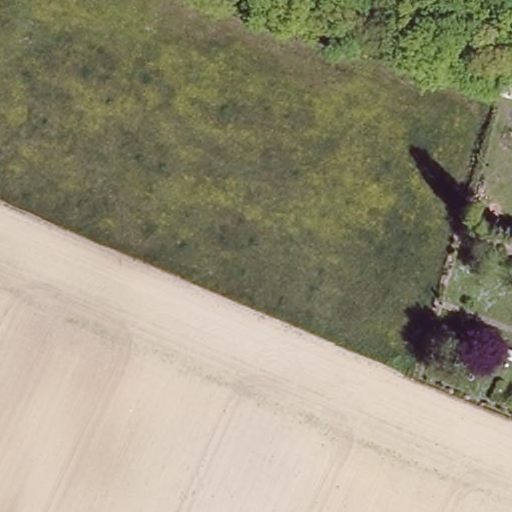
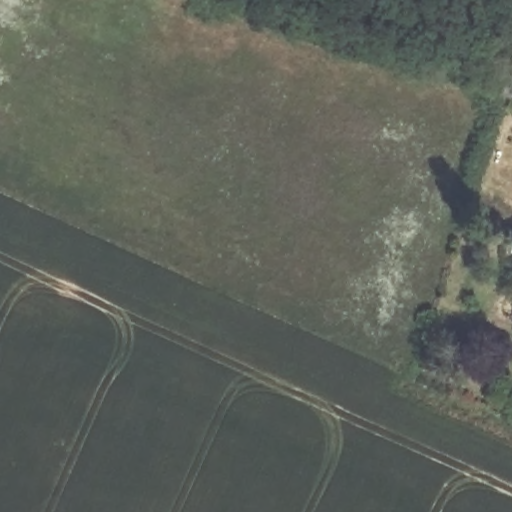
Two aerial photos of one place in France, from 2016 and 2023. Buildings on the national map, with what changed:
unchanged [(510,75),(512,75),(512,97),(506,95),(510,75)]

